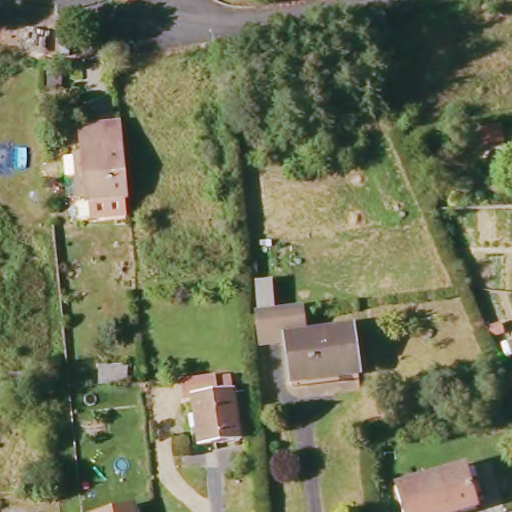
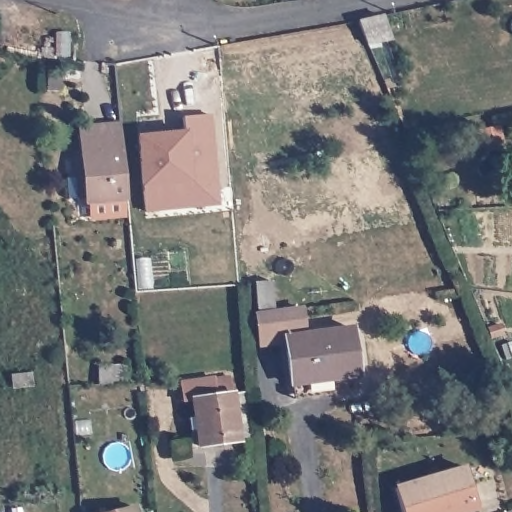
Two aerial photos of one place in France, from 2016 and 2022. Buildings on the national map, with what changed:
unchanged [(369,19),(380,16),(386,40),(366,44),(356,21),(369,19)]
new [(142,185),(136,135),(184,130),(183,117),(211,114),(219,204),(146,212),(142,185)]
unchanged [(81,207),(74,131),(114,127),(121,205),(81,207)]
unchanged [(274,311),(301,307),(304,334),(354,328),(359,382),(289,389),(284,342),(259,349),(254,314),(248,286),(272,283),(274,311)]
unchanged [(499,323),(504,335),(492,340),(488,328),(499,323)]
unchanged [(252,437),(239,438),(237,441),(198,446),(191,400),(181,401),(179,382),(213,377),(216,395),(248,390),(252,437)]
unchanged [(462,512),(401,512),(394,487),(464,467),(476,508),(462,512)]
unchanged [(139,507),(141,512),(116,512),(139,507)]

